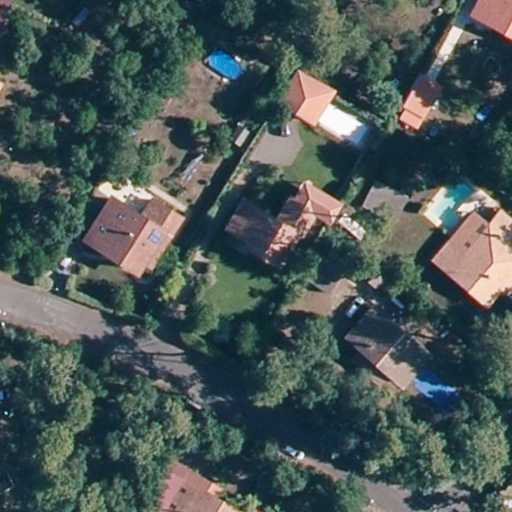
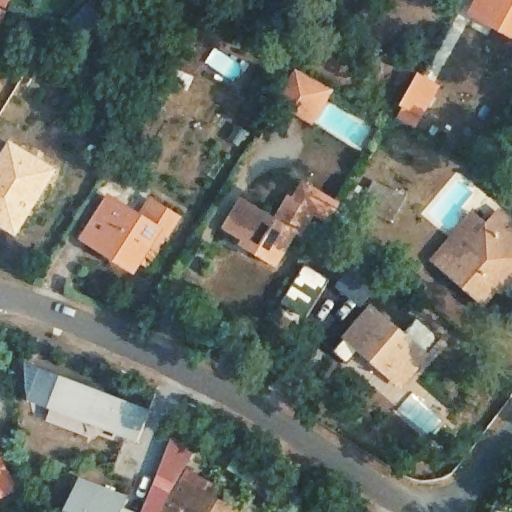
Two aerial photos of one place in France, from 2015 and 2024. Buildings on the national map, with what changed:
unchanged [(473,14),(480,0),(512,0),(512,34),(473,14)]
unchanged [(0,17),(0,7),(3,8),(0,17)]
unchanged [(296,64),(332,84),(313,120),(276,97),(296,64)]
unchanged [(393,109),(400,96),(398,95),(414,65),(436,77),(420,107),(418,106),(411,120),(393,109)]
new [(57,169),(16,238),(0,228),(0,154),(9,140),(57,169)]
unchanged [(391,222),(371,209),(362,204),(377,180),(385,184),(406,197),(391,222)]
unchanged [(229,226),(245,199),(277,218),(292,196),(294,197),(303,182),(342,205),(332,222),(331,225),(313,215),(302,232),(296,230),(275,264),(253,251),(248,247),(251,241),(229,226)]
unchanged [(84,238),(107,198),(138,215),(148,199),(177,215),(167,232),(150,261),(139,254),(130,267),(116,258),(102,250),(84,238)]
unchanged [(492,287),(479,302),(430,261),(443,245),(470,213),(485,225),(495,213),(512,227),(512,275),(498,292),(492,287)]
unchanged [(330,287),(307,271),(319,251),(323,253),(330,241),(350,254),(330,287)]
unchanged [(391,278),(380,291),(355,270),(367,257),(391,278)]
unchanged [(353,357),(360,349),(347,337),(372,307),(428,356),(403,387),(389,374),(382,383),(353,357)]
new [(36,402),(50,370),(151,411),(140,441),(36,402)]
unchanged [(0,472),(0,461),(4,470),(0,472)]
unchanged [(149,500),(168,468),(183,478),(189,470),(218,487),(213,496),(239,512),(163,512),(164,510),(149,500)]
new [(127,507),(137,512),(68,512),(82,478),(131,497),(127,507)]

